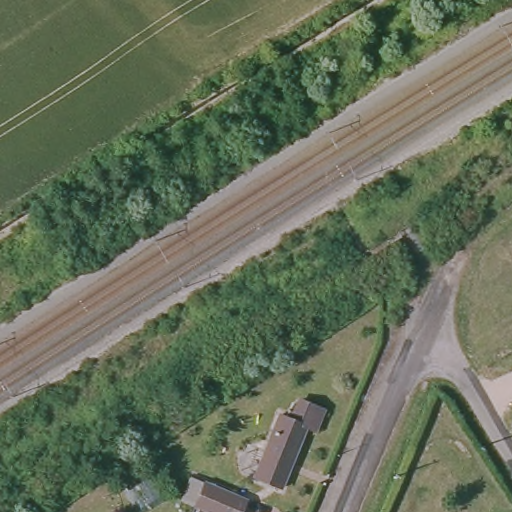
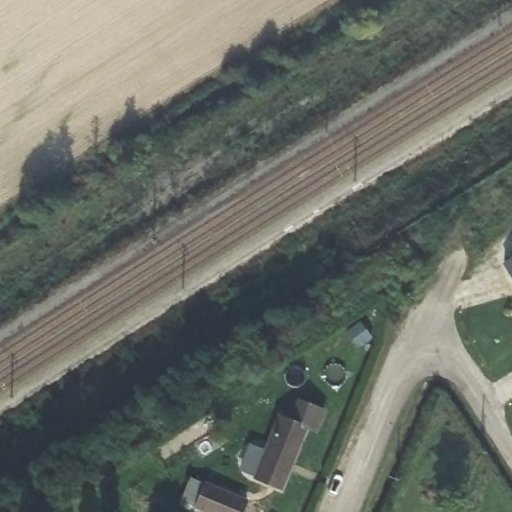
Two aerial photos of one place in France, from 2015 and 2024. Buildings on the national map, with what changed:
new [(512,258),(512,279),(502,264),(512,258)]
unchanged [(303,427),(279,486),(256,478),(280,417),(303,427)]
unchanged [(242,499),(237,512),(211,512),(190,503),(200,481),(242,499)]

